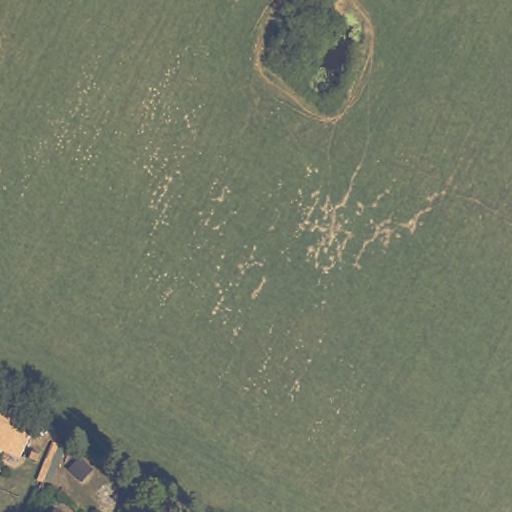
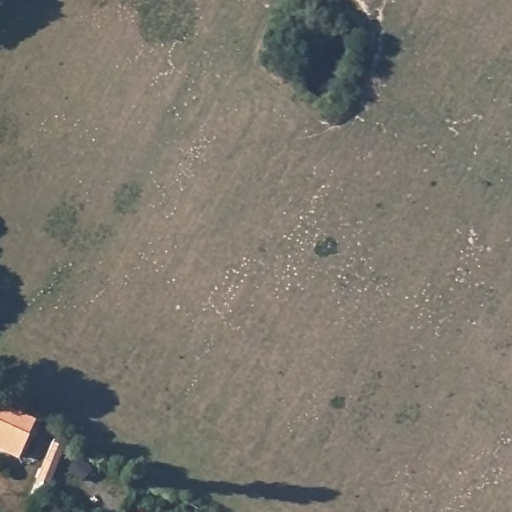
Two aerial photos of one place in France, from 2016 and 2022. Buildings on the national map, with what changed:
unchanged [(17,450),(0,442),(0,417),(26,429),(17,450)]

